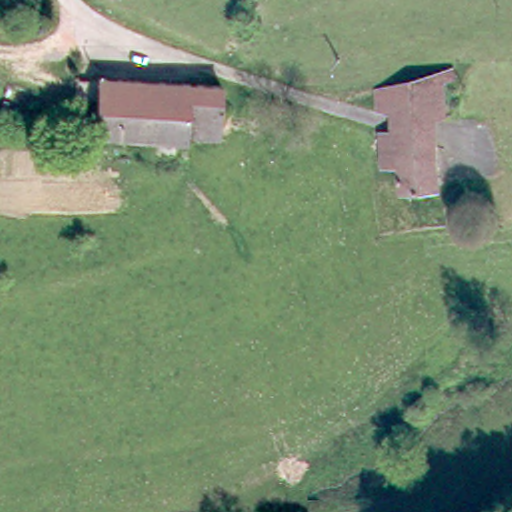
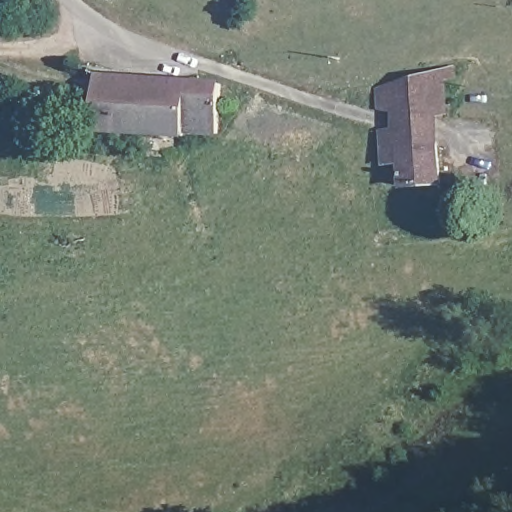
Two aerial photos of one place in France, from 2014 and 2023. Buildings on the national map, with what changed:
unchanged [(410,82),(452,72),(454,78),(439,80),(449,118),(440,119),(420,120),(410,82)]
unchanged [(217,136),(185,135),(185,138),(92,134),(95,75),(219,83),(217,136)]
unchanged [(381,89),(410,82),(420,120),(440,119),(437,146),(401,150),(401,163),(385,163),(383,133),(381,89)]
unchanged [(404,187),(403,163),(401,163),(401,150),(437,146),(442,184),(404,187)]

